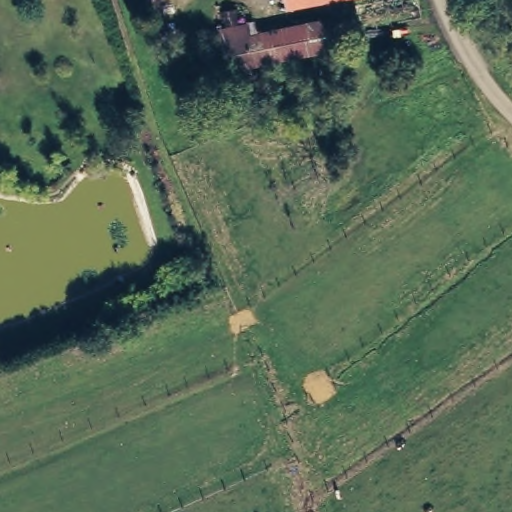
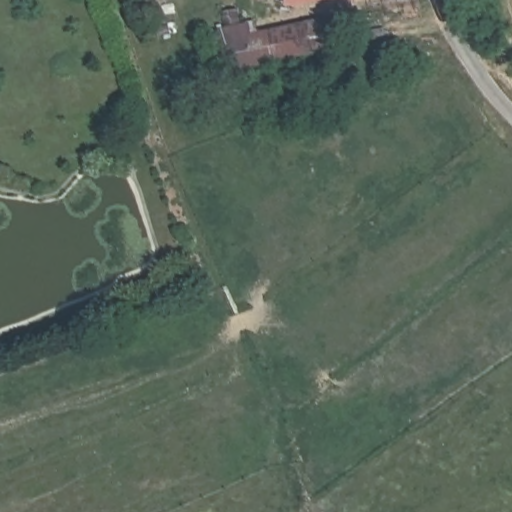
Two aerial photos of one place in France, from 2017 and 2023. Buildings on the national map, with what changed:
unchanged [(317,0),(283,7),(282,0),(317,0)]
unchanged [(346,49),(226,79),(215,32),(257,22),(260,34),(337,19),(346,49)]

